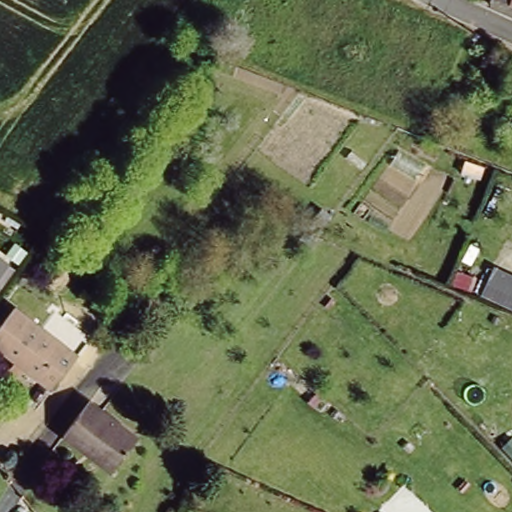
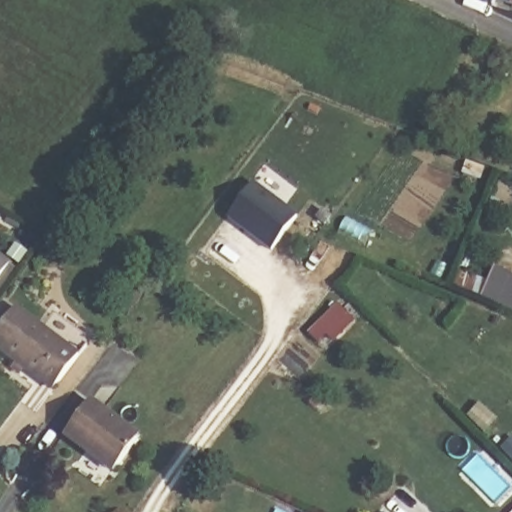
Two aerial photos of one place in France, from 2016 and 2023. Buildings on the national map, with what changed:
new [(273,251),(228,216),(256,182),(259,184),(263,178),(284,194),(280,199),(301,216),(273,251)]
unchanged [(14,240),(26,250),(16,268),(0,292),(0,255),(3,257),(14,240)]
unchanged [(0,347),(0,332),(17,308),(79,354),(57,384),(55,386),(29,367),(0,347)]
unchanged [(86,441),(65,426),(90,393),(137,428),(116,457),(112,461),(86,441)]

